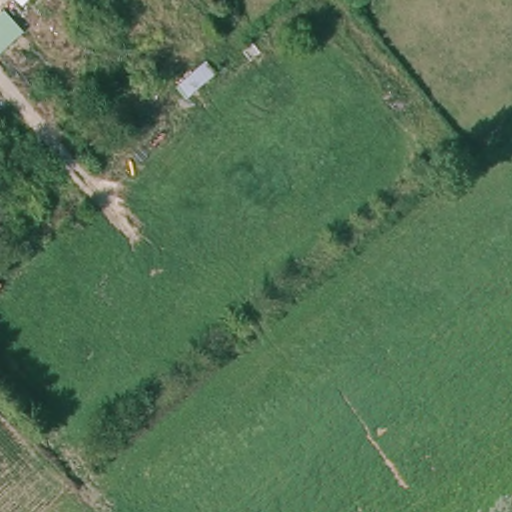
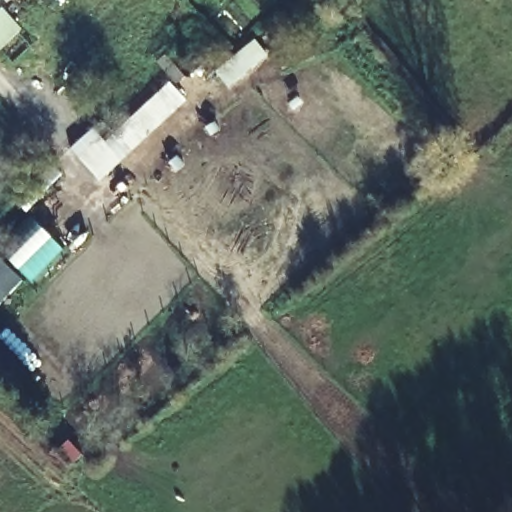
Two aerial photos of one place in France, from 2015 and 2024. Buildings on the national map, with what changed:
unchanged [(20,30),(0,48),(0,10),(1,9),(20,30)]
new [(187,100),(100,181),(70,148),(89,131),(97,140),(172,79),(157,62),(165,53),(182,70),(182,95),(187,100)]
new [(0,304),(0,258),(23,280),(0,304)]

